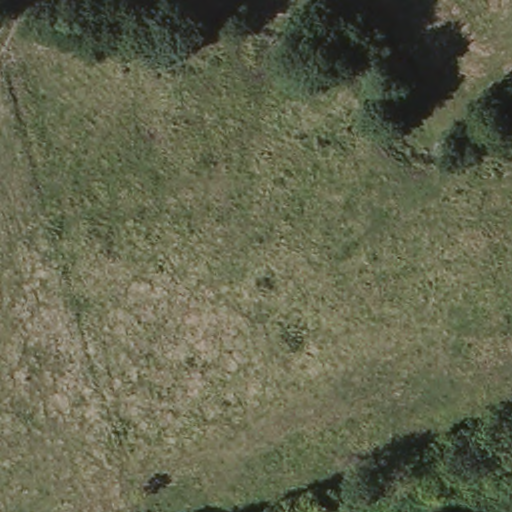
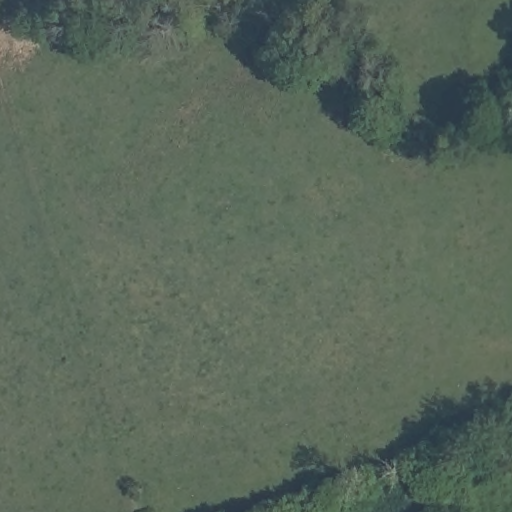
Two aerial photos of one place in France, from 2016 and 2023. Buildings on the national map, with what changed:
[]

